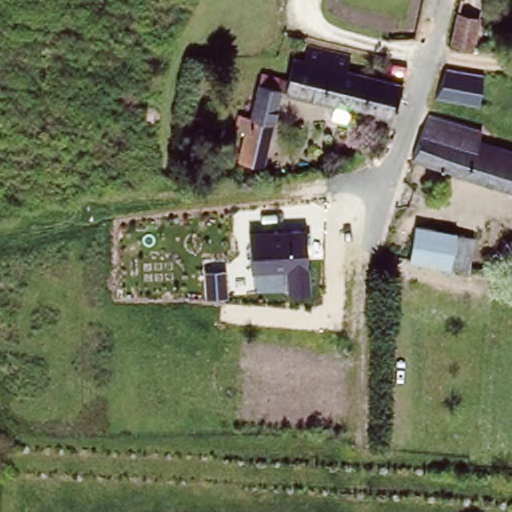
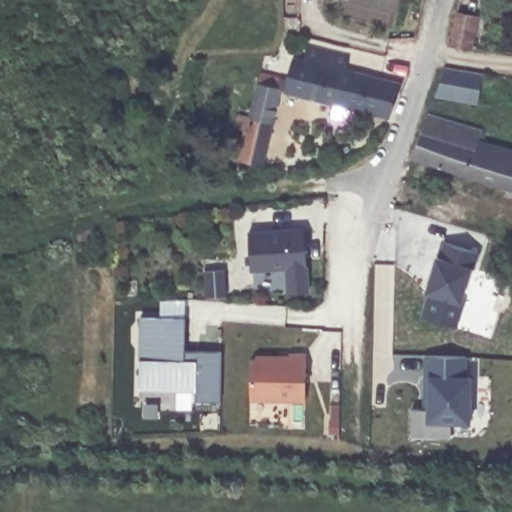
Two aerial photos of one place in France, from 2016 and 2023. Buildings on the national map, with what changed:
unchanged [(456,11),(478,17),(471,49),(447,46),(456,11)]
unchanged [(233,159),(240,131),(228,129),(232,114),(243,117),(256,75),(281,80),(287,56),(297,60),(302,45),(344,55),(341,70),(396,84),(384,118),(350,110),(346,121),(327,115),(329,105),(274,90),(262,136),(255,165),(233,159)]
unchanged [(443,68),(480,74),(476,103),(433,96),(443,68)]
unchanged [(414,158),(432,114),(485,130),(483,140),(495,145),(512,149),(512,188),(414,158)]
unchanged [(307,227),(310,291),(288,293),(287,272),(248,272),(250,230),(307,227)]
demolished [(458,229),(477,231),(472,265),(453,262),(458,229)]
new [(475,268),(471,266),(461,301),(465,302),(457,326),(421,315),(429,293),(424,292),(435,254),(438,255),(443,241),(479,252),(475,268)]
new [(220,401),(193,400),(192,410),(175,410),(176,390),(138,389),(140,359),(140,317),(185,316),(185,351),(220,351),(220,401)]
new [(305,402),(250,401),(251,360),(258,355),(290,355),(290,352),(306,353),(305,402)]
new [(465,375),(471,375),(470,423),(451,423),(451,438),(411,437),(411,408),(426,408),(427,373),(426,355),(467,356),(465,375)]

